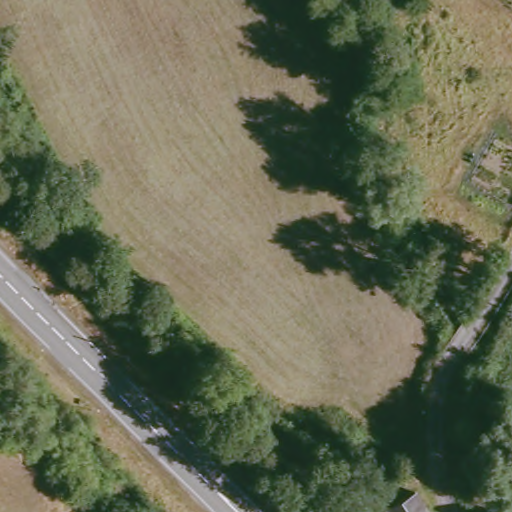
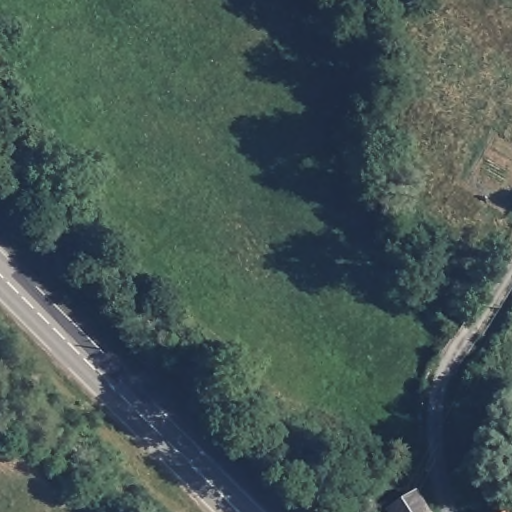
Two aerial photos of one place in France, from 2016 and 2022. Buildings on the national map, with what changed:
unchanged [(416,492),(429,512),(395,512),(392,508),(416,492)]

